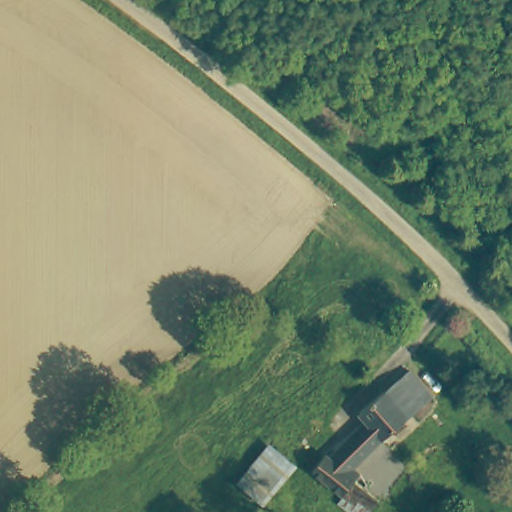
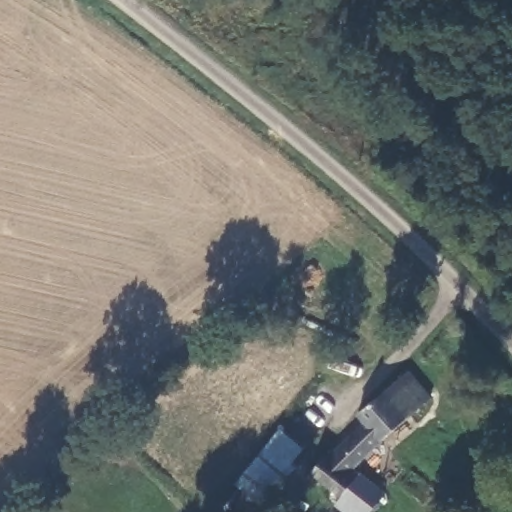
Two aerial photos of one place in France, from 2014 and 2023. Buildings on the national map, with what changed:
unchanged [(364,417),(356,407),(402,369),(424,395),(379,435),(364,417)]
unchanged [(348,463),(354,470),(350,475),(324,451),(364,417),(379,435),(348,463)]
unchanged [(280,438),(302,460),(269,494),(247,472),(280,438)]
unchanged [(336,498),(316,480),(303,468),(321,448),(324,451),(350,475),(354,478),(374,497),(360,512),(344,512),(333,502),(336,498)]

